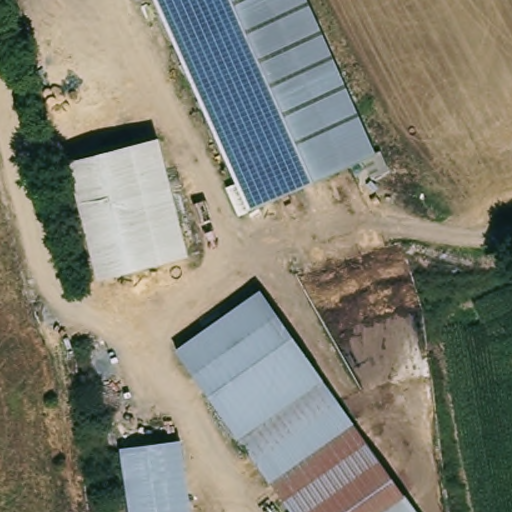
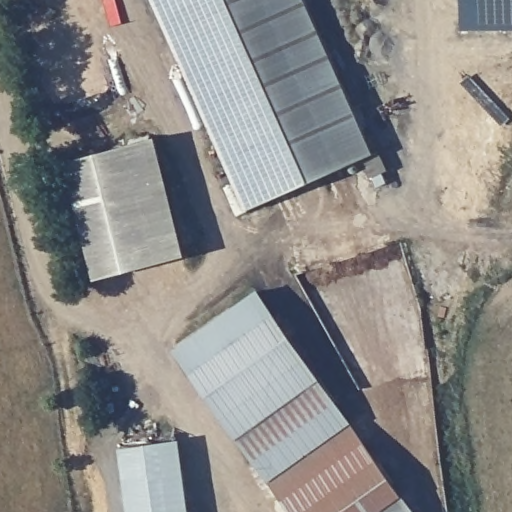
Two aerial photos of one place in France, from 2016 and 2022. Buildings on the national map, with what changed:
unchanged [(377,154),(257,209),(162,0),(314,0),(361,101),(362,105),(382,151),(377,154)]
new [(464,0),(512,0),(512,29),(464,29),(464,0)]
unchanged [(187,260),(99,283),(67,167),(156,144),(187,260)]
unchanged [(200,375),(182,350),(264,289),(283,316),(200,375)]
unchanged [(298,512),(200,375),(283,316),(422,512),(298,512)]
unchanged [(196,512),(132,512),(120,454),(182,440),(196,512)]

